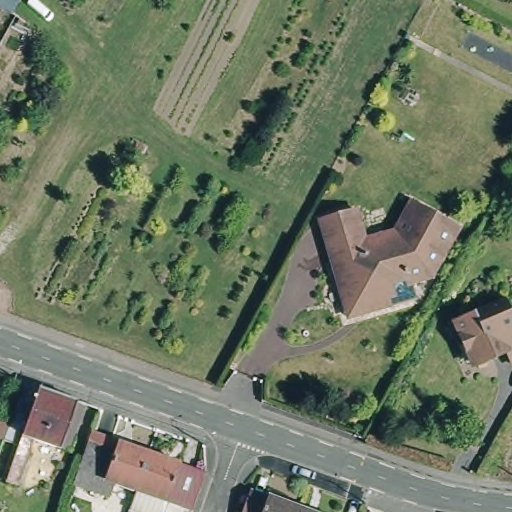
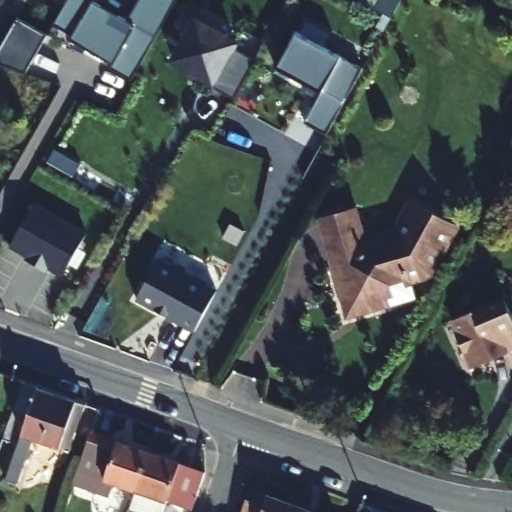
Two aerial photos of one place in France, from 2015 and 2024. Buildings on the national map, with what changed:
demolished [(0,5),(0,0),(19,0),(13,14),(0,5)]
new [(52,0),(54,0),(54,1),(52,0)]
new [(93,0),(91,4),(127,25),(141,0),(174,0),(129,82),(110,69),(112,65),(99,58),(97,61),(86,54),(87,52),(69,41),(71,35),(52,25),(68,0),(93,0)]
new [(366,5),(369,0),(399,0),(391,17),(366,5)]
new [(24,72),(0,65),(0,45),(15,18),(45,35),(24,72)]
new [(240,44),(236,51),(253,60),(231,100),(167,65),(192,19),(240,44)]
new [(325,138),(305,126),(320,94),(276,72),(297,33),(363,69),(325,138)]
new [(83,164),(75,179),(45,162),(54,148),(83,164)]
new [(34,204),(87,234),(62,278),(47,271),(46,273),(25,262),(27,260),(8,248),(34,204)]
unchanged [(342,315),(317,222),(351,213),(360,244),(392,235),(409,204),(454,230),(427,278),(408,283),(412,302),(385,310),(384,307),(372,310),(372,312),(362,314),(362,309),(342,315)]
new [(219,292),(196,336),(168,321),(167,322),(157,317),(159,315),(136,302),(160,260),(219,292)]
unchanged [(498,354),(470,367),(447,322),(496,300),(511,332),(512,332),(512,366),(500,367),(498,354)]
unchanged [(31,448),(16,490),(4,485),(30,412),(4,403),(15,375),(76,396),(60,443),(56,457),(31,448)]
unchanged [(76,474),(94,424),(120,433),(106,471),(116,473),(111,486),(76,474)]
unchanged [(106,471),(120,433),(152,444),(139,482),(116,473),(106,471)]
unchanged [(194,501),(170,492),(164,512),(132,500),(139,482),(152,444),(207,463),(194,501)]
unchanged [(265,492),(279,497),(312,510),(318,512),(257,512),(265,492)]

